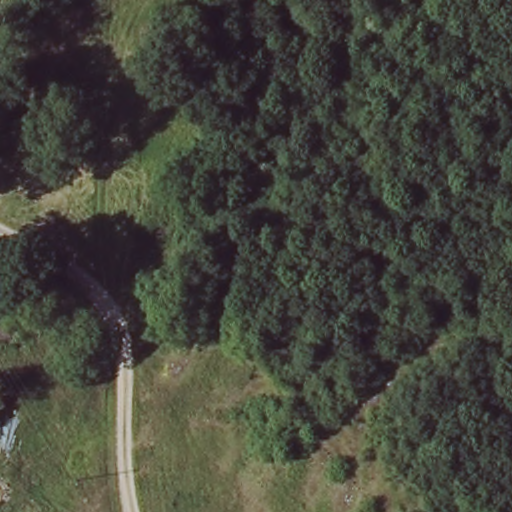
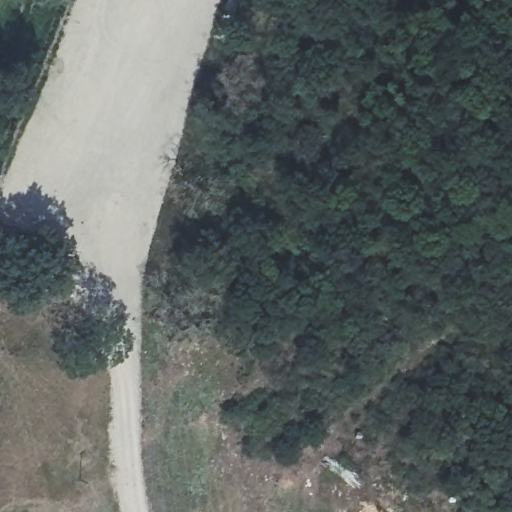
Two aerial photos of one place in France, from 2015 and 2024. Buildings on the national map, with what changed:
[]

